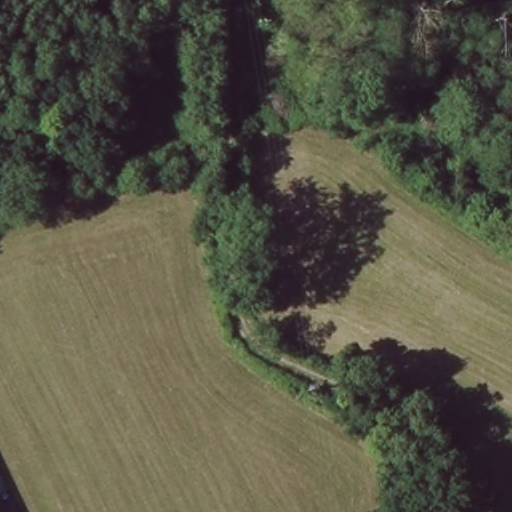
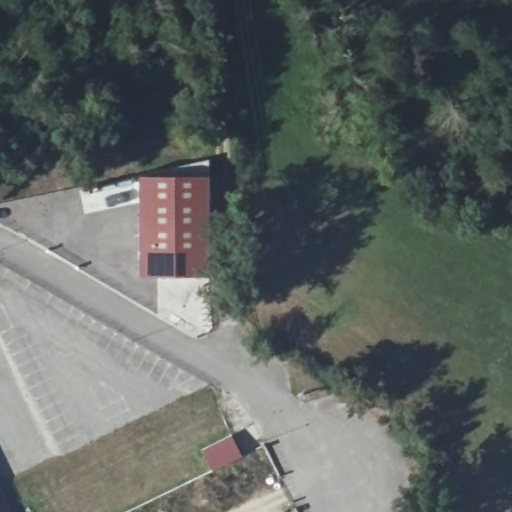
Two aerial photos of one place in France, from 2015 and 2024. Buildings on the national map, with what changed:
new [(205,176),(207,278),(140,276),(138,175),(205,176)]

